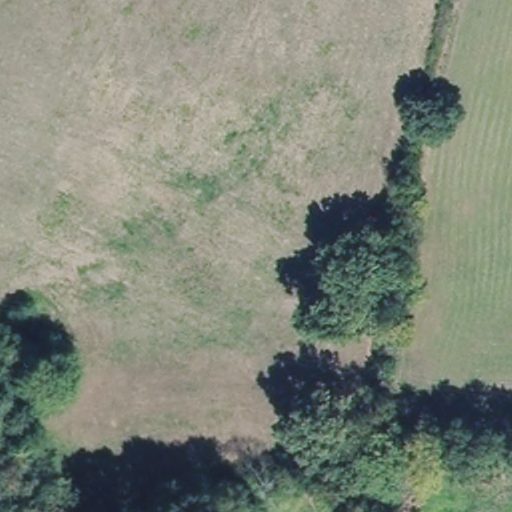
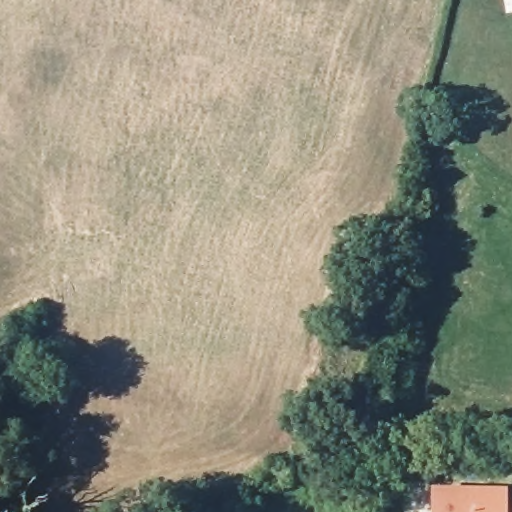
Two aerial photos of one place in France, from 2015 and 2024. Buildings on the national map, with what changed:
new [(508,487),(508,502),(512,502),(512,512),(431,512),(431,486),(508,487)]

